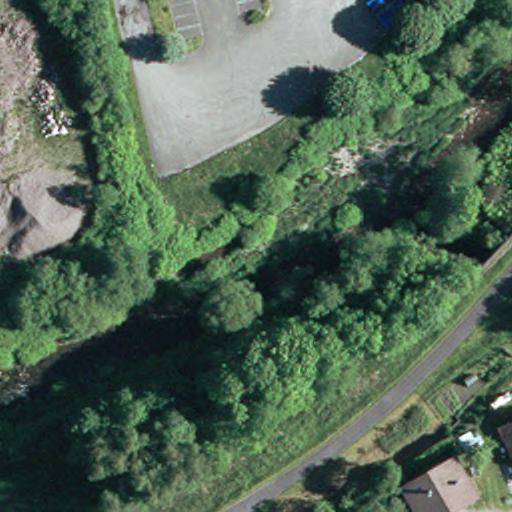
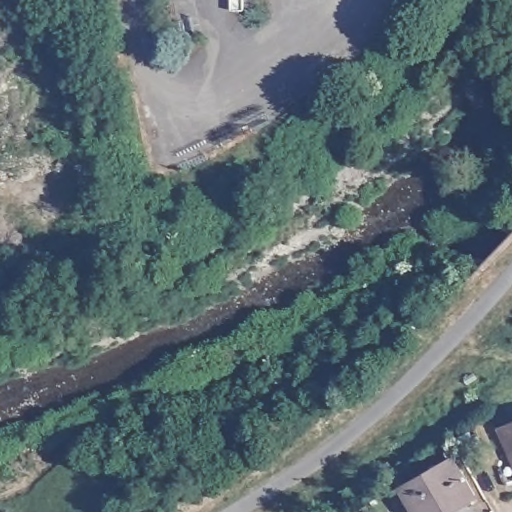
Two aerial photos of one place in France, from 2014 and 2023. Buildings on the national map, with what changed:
unchanged [(501,422),(512,418),(512,452),(501,422)]
unchanged [(434,512),(416,512),(401,482),(450,455),(469,493),(434,512)]

